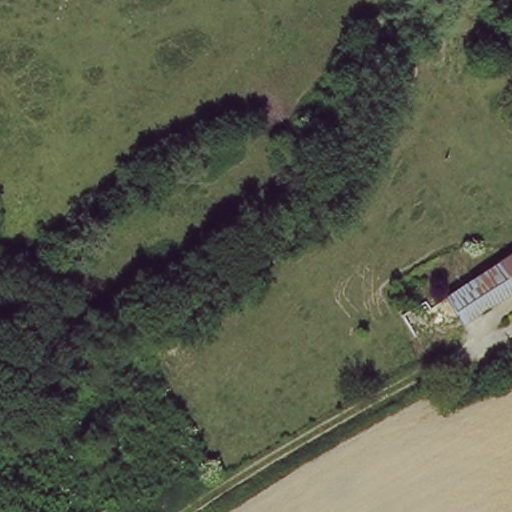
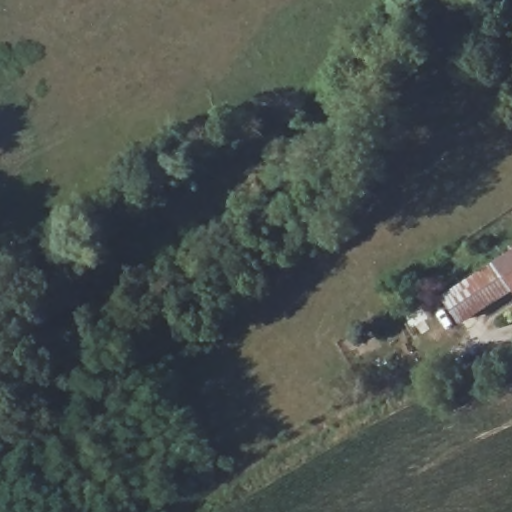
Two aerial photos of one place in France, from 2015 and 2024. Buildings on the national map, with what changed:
unchanged [(512,248),(512,291),(494,259),(512,248)]
unchanged [(440,340),(420,308),(494,259),(512,291),(512,301),(440,340)]

